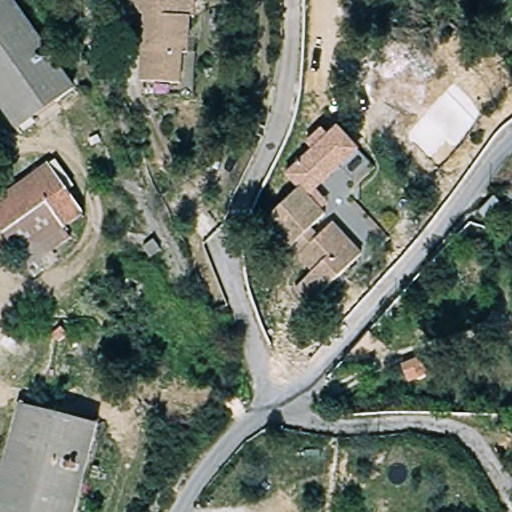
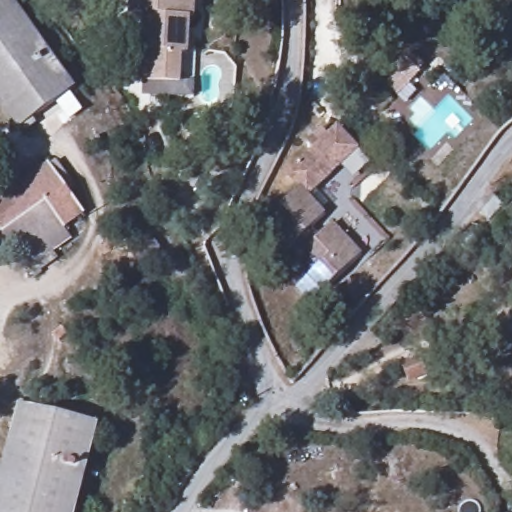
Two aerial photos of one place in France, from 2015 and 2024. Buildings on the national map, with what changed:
unchanged [(0,26),(0,8),(0,0),(10,0),(71,86),(45,105),(0,26)]
unchanged [(185,62),(178,61),(177,93),(133,86),(136,21),(122,20),(124,0),(187,0),(185,62)]
unchanged [(0,109),(0,26),(45,105),(13,127),(0,109)]
unchanged [(313,304),(300,290),(317,272),(298,254),(302,251),(295,244),(288,251),(262,227),(297,191),(281,175),(309,146),(301,139),(314,125),(322,133),(332,123),(355,146),(305,199),(322,215),(308,229),(316,236),(330,222),(362,253),(313,304)]
unchanged [(27,174),(15,158),(30,149),(42,164),(45,163),(80,213),(64,225),(45,202),(1,232),(0,231),(0,193),(27,174)]
unchanged [(32,276),(25,266),(1,232),(45,202),(64,225),(70,236),(34,261),(40,271),(32,276)]
unchanged [(483,202),(501,219),(487,232),(473,219),(483,202)]
unchanged [(364,332),(372,341),(352,359),(343,351),(364,332)]
unchanged [(393,368),(414,358),(421,371),(400,381),(393,368)]
unchanged [(12,406),(93,425),(70,512),(0,512),(0,452),(12,406)]

